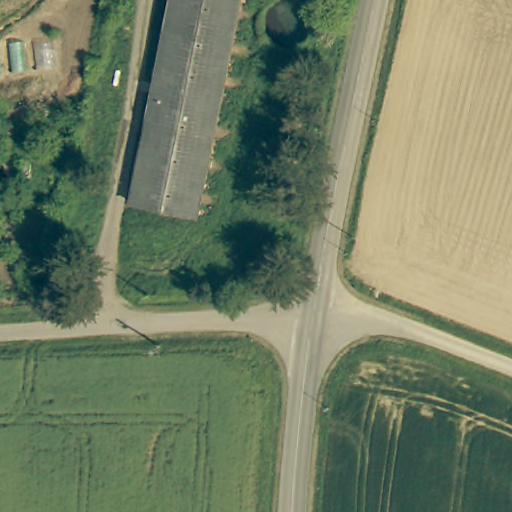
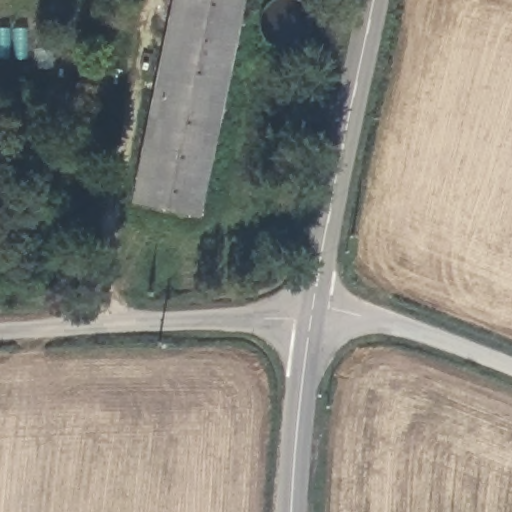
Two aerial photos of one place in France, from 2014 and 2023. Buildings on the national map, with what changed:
unchanged [(245,0),(202,218),(135,203),(176,0),(245,0)]

